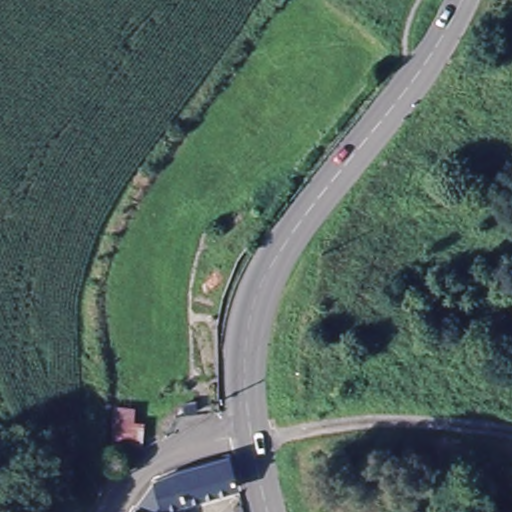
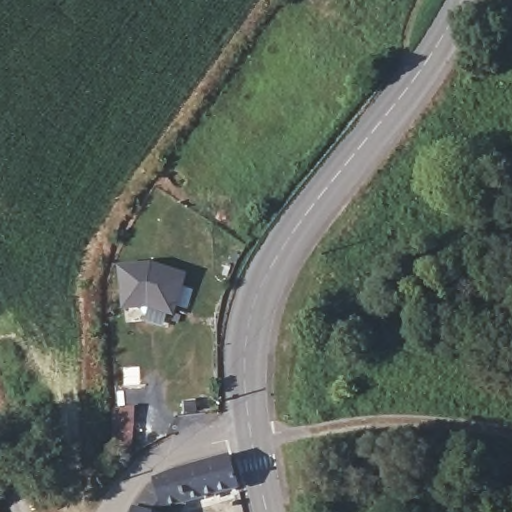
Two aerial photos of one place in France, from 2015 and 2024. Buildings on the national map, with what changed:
new [(154,272),(186,283),(174,319),(149,311),(126,312),(123,274),(154,272)]
unchanged [(198,414),(186,416),(183,403),(196,402),(198,414)]
unchanged [(113,421),(119,421),(133,422),(130,458),(113,457),(113,421)]
unchanged [(138,508),(159,481),(231,457),(239,487),(185,503),(182,512),(137,512),(138,508)]

